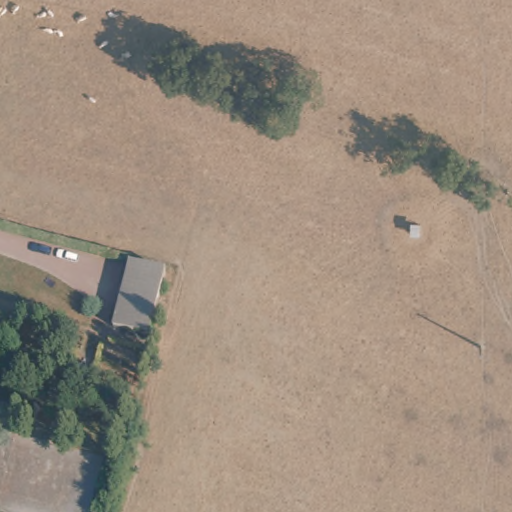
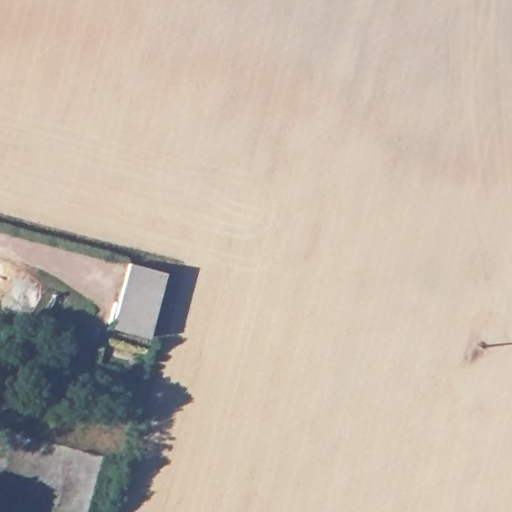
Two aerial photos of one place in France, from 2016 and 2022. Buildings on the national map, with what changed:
unchanged [(164,273),(146,339),(110,331),(126,264),(164,273)]

